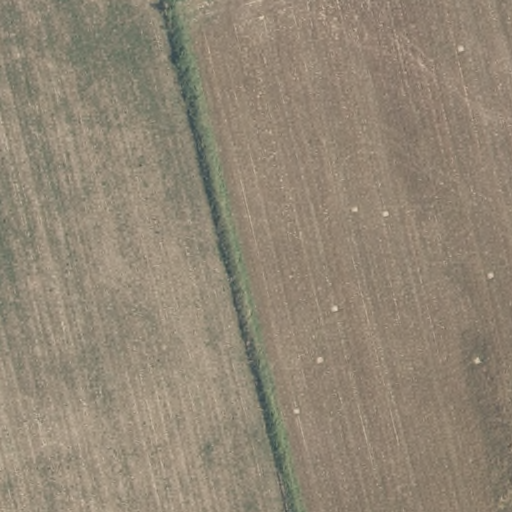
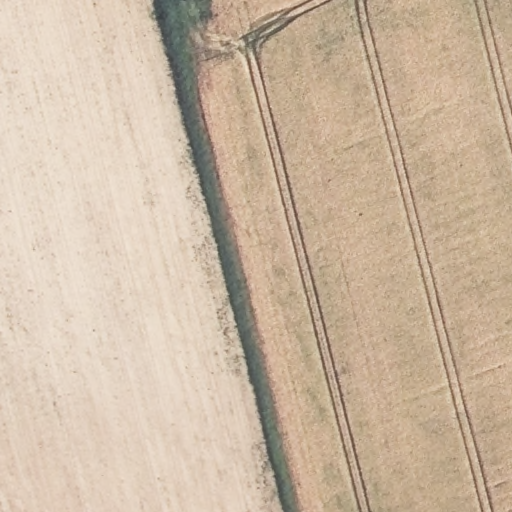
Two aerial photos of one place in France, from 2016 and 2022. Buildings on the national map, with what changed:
[]

